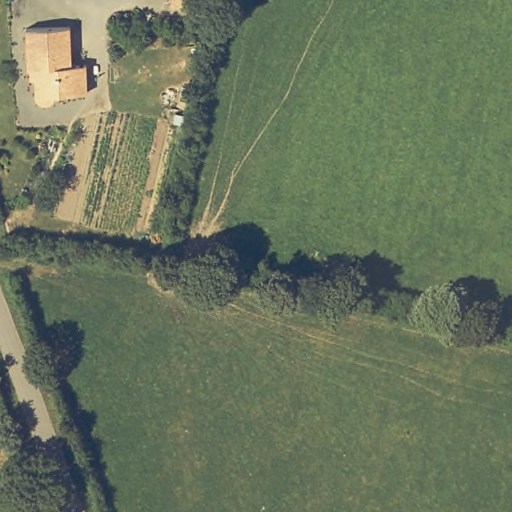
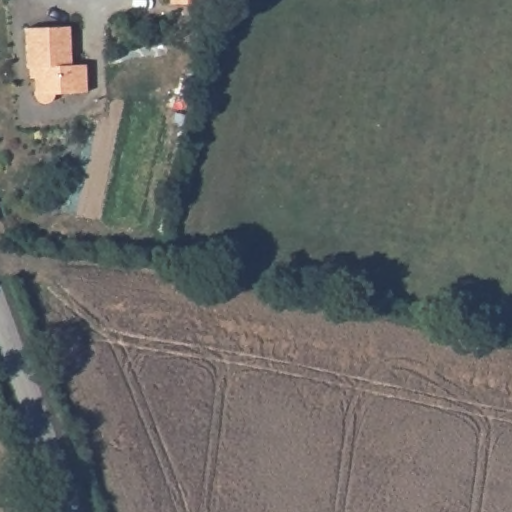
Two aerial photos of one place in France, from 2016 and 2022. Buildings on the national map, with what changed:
unchanged [(168,0),(200,0),(200,6),(168,4),(168,0)]
unchanged [(69,66),(81,66),(82,95),(55,95),(52,101),(47,104),(40,104),(35,101),(31,96),(31,95),(31,69),(23,69),(22,29),(67,27),(69,66)]

